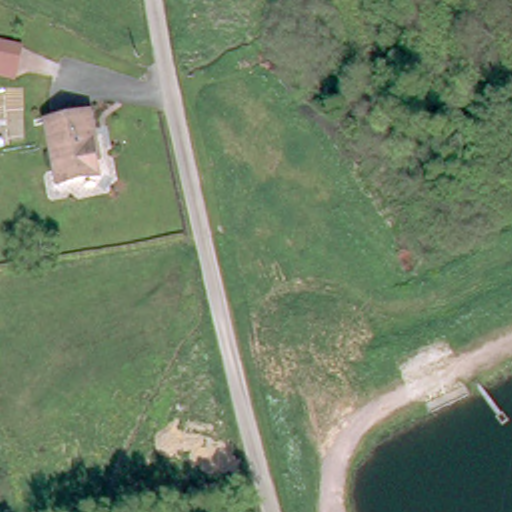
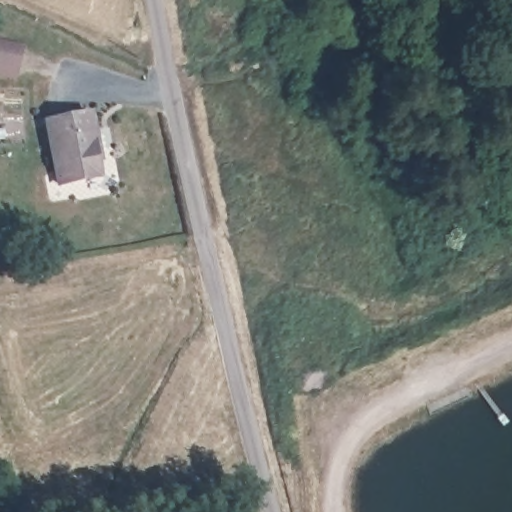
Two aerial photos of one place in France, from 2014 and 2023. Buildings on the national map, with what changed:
unchanged [(24,46),(15,82),(0,78),(0,40),(24,46)]
unchanged [(106,175),(66,185),(51,122),(96,111),(101,129),(95,130),(106,175)]

